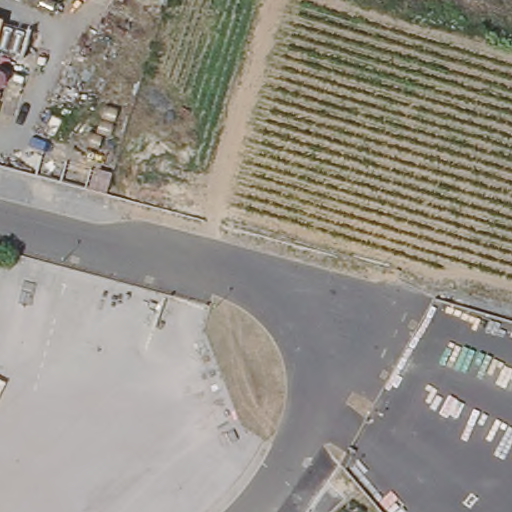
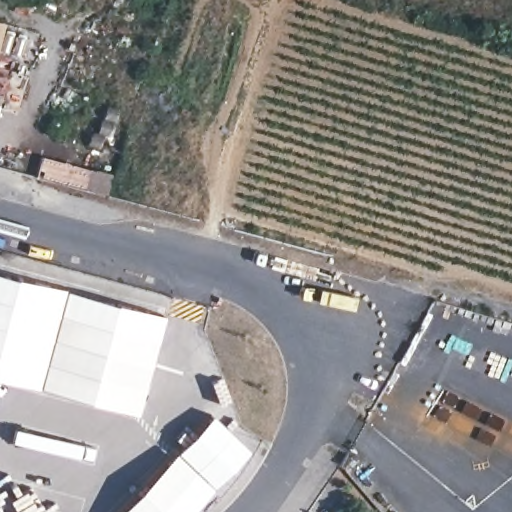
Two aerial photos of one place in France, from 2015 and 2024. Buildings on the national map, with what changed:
unchanged [(1,19),(0,25),(0,19),(1,19)]
new [(111,173),(105,194),(35,176),(40,154),(111,173)]
new [(162,314),(136,411),(0,376),(0,271),(162,314)]
new [(210,413),(247,447),(212,484),(176,450),(210,413)]
new [(121,512),(176,454),(212,488),(190,512),(121,512)]

